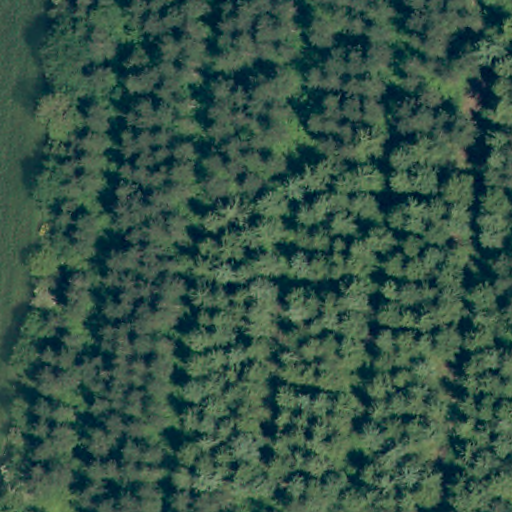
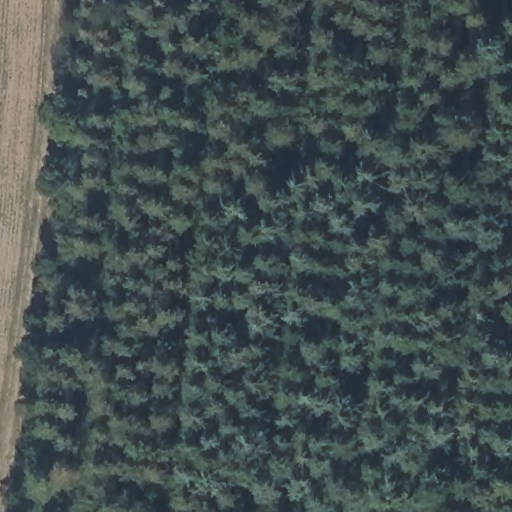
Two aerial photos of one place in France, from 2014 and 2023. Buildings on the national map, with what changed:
[]

